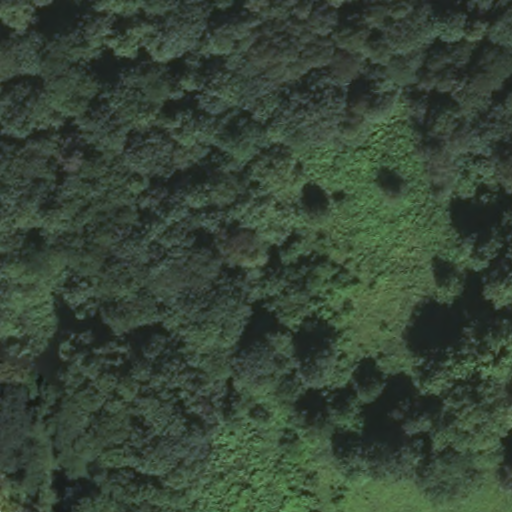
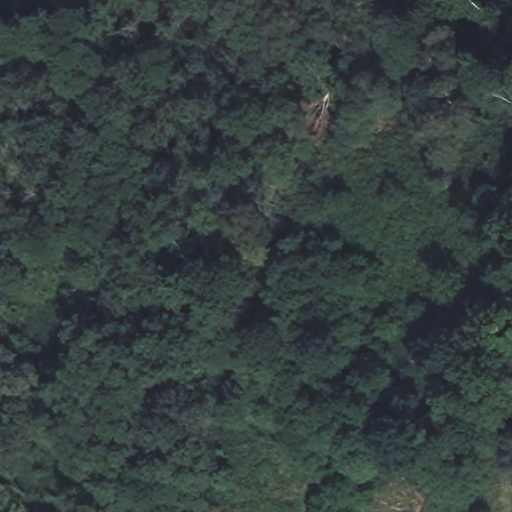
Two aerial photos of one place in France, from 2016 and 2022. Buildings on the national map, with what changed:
unchanged [(477,350),(454,403),(450,400),(433,391),(455,340),(477,350)]

